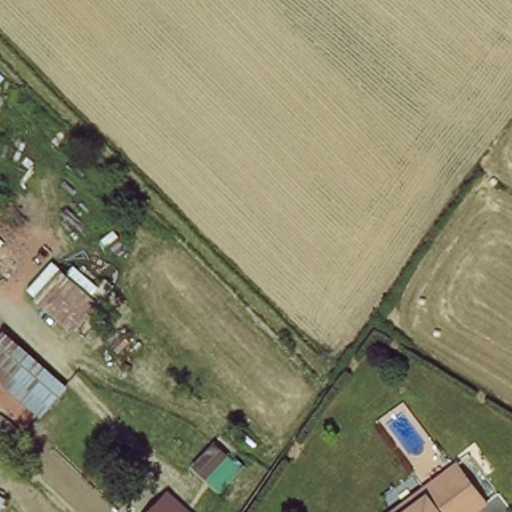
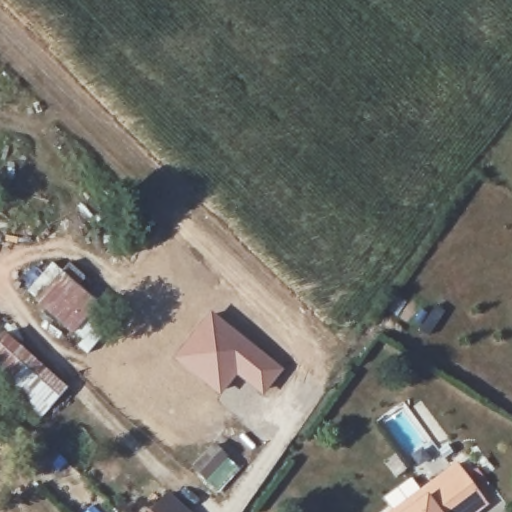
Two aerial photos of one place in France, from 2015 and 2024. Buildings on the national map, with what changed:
unchanged [(38,303),(65,270),(105,305),(76,336),(38,303)]
new [(209,309),(284,367),(263,395),(236,375),(219,395),(170,356),(209,309)]
unchanged [(5,342),(57,384),(62,388),(45,412),(42,408),(0,375),(0,339),(5,342)]
unchanged [(188,466),(212,438),(240,465),(219,490),(188,466)]
unchanged [(455,467),(484,507),(478,512),(394,512),(420,493),(455,467)]
unchanged [(185,512),(150,512),(168,494),(185,512)]

